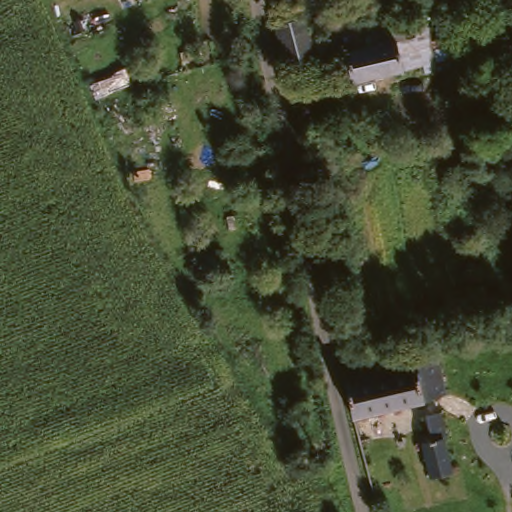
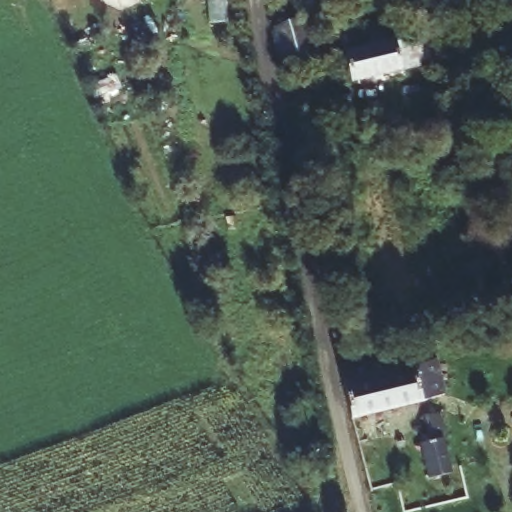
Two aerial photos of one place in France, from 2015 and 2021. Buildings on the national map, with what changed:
unchanged [(298,15),(293,0),(321,0),(323,7),(298,15)]
unchanged [(425,74),(423,65),(348,86),(342,59),(287,73),(276,25),(305,15),(312,35),(376,19),(485,26),(483,74),(425,74)]
unchanged [(417,346),(420,361),(442,355),(450,390),(357,414),(345,362),(417,346)]
unchanged [(448,409),(456,433),(453,434),(462,469),(440,474),(430,432),(437,430),(434,412),(448,409)]

